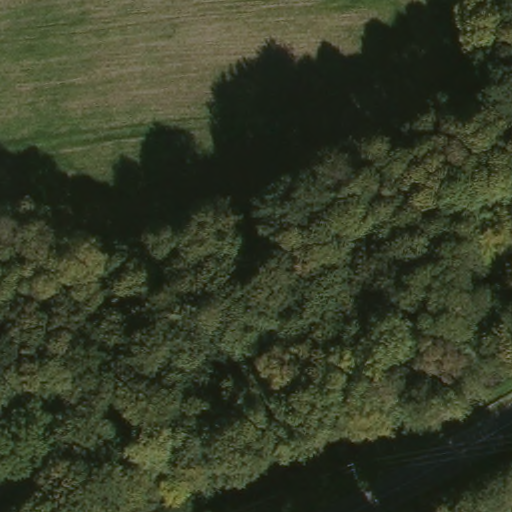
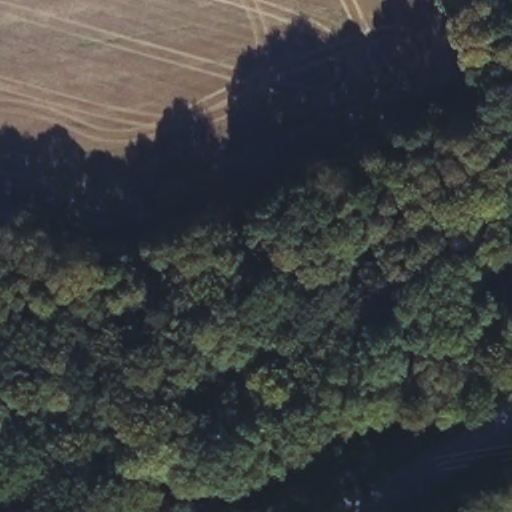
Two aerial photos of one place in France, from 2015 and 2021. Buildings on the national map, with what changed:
[]

